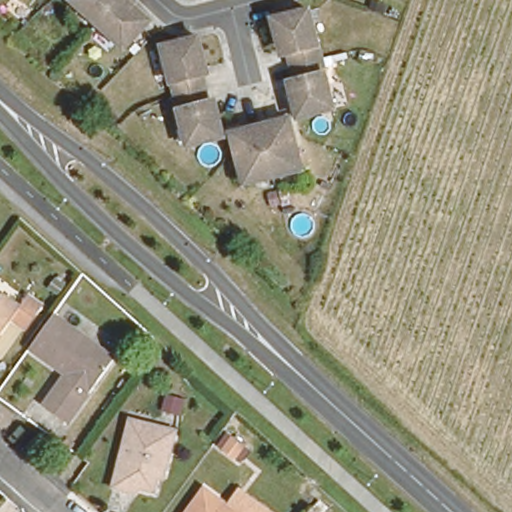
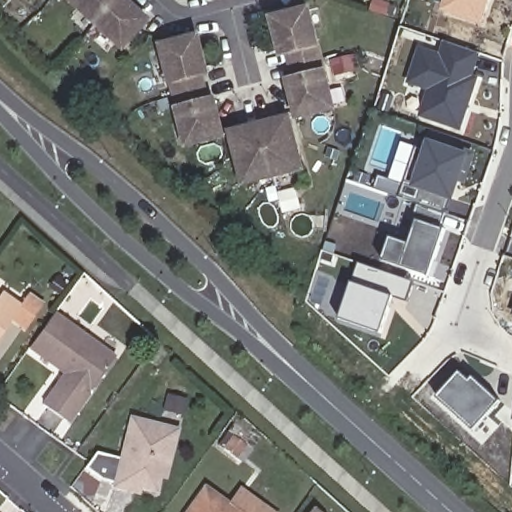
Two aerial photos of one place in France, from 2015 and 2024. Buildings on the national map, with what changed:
unchanged [(137,16),(133,20),(139,25),(118,48),(91,23),(67,0),(121,0),(137,16)]
new [(483,20),(446,7),(449,0),(490,0),(483,20)]
unchanged [(308,11),(319,59),(331,110),(295,117),(289,92),(295,90),(293,82),(289,66),(286,53),(284,45),(279,47),(272,19),(308,11)]
unchanged [(198,34),(204,62),(198,63),(200,71),(203,86),(207,100),(208,108),(214,107),(220,135),(185,142),(177,107),(173,92),(170,78),(162,42),(198,34)]
new [(461,126),(423,112),(432,86),(412,80),(423,47),(443,54),(448,40),(481,51),(473,75),(478,77),(461,126)]
unchanged [(257,126),(286,120),(297,171),(269,177),(240,184),(228,132),(257,126)]
new [(458,182),(456,182),(446,212),(400,196),(419,140),(430,143),(434,132),(475,147),(467,170),(462,183),(458,182)]
new [(430,273),(384,257),(392,234),(411,241),(419,217),(415,216),(419,202),(446,212),(441,226),(446,227),(435,259),(439,261),(434,275),(430,273)]
new [(382,331),(343,317),(362,262),(415,280),(408,300),(394,295),(382,331)]
unchanged [(6,301),(12,292),(31,305),(0,346),(0,296),(6,301)]
unchanged [(121,359),(77,422),(50,402),(71,372),(37,348),(61,315),(121,359)]
new [(472,430),(435,396),(459,371),(481,391),(469,379),(472,376),(484,387),(499,401),(472,430)]
unchanged [(177,425),(169,457),(164,455),(157,487),(133,482),(132,487),(115,482),(131,414),(177,425)]
unchanged [(261,447),(252,461),(239,452),(248,438),(261,447)]
unchanged [(183,512),(203,482),(245,512),(183,512)]
unchanged [(317,512),(308,512),(311,507),(317,512)]

